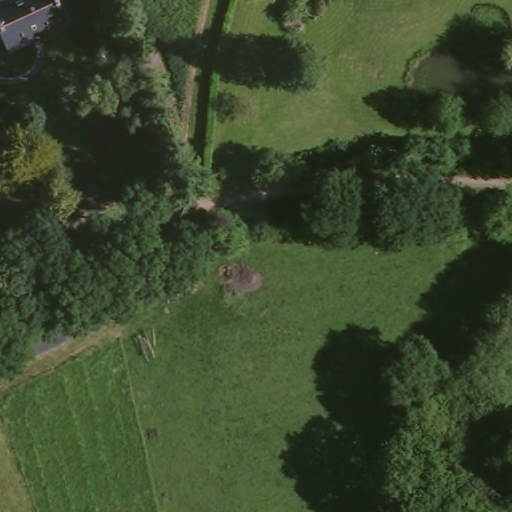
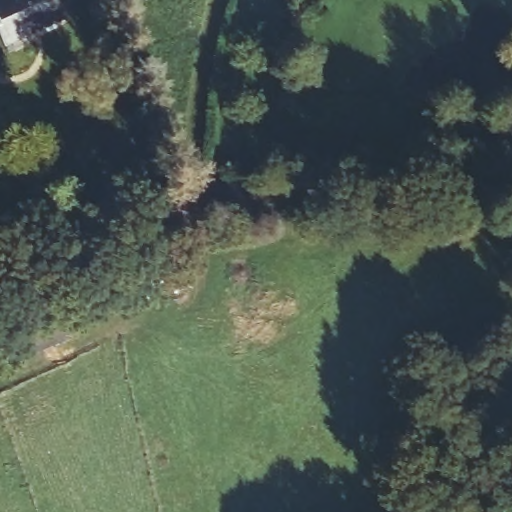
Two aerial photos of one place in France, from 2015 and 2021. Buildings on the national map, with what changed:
unchanged [(46,0),(58,30),(5,53),(0,41),(0,3),(7,0),(46,0)]

